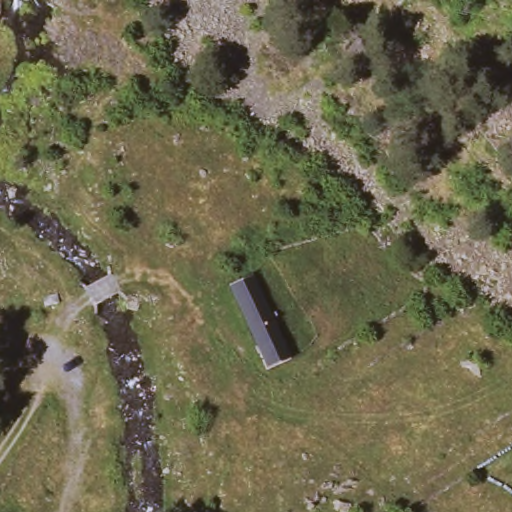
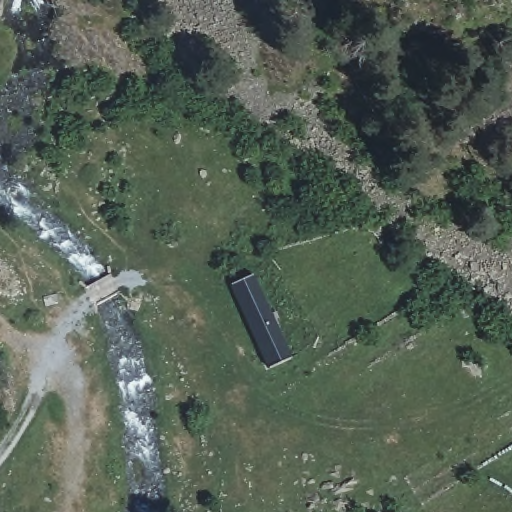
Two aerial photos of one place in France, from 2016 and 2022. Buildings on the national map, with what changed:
unchanged [(271,318),(290,353),(265,366),(227,284),(251,276),(271,318)]

